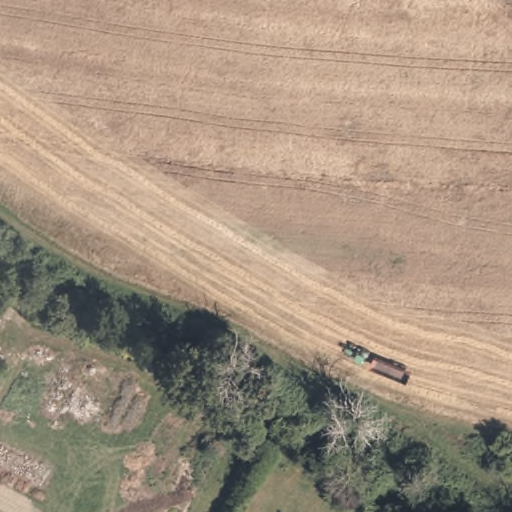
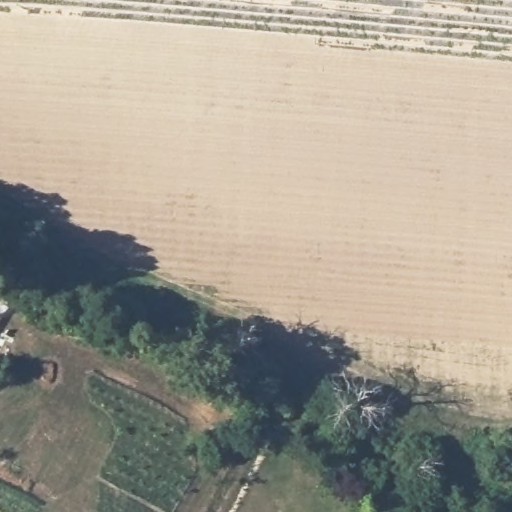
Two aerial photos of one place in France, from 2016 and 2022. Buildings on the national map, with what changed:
unchanged [(0,323),(0,304),(8,309),(0,323)]

